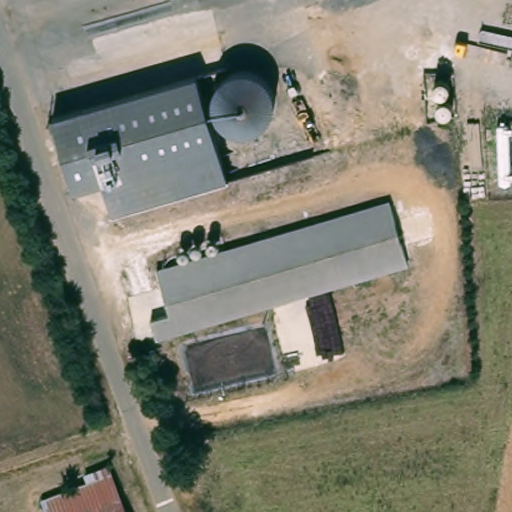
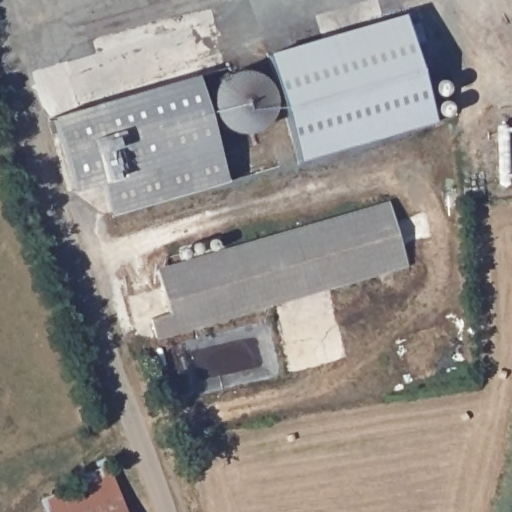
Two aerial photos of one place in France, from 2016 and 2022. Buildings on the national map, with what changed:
new [(435,120),(299,160),(281,106),(282,95),(280,83),(274,73),(267,53),(403,14),(435,120)]
unchanged [(115,210),(111,181),(79,190),(60,113),(202,72),(210,99),(212,92),(214,86),(220,77),(228,70),(238,65),(251,65),(266,68),(274,73),(280,83),(282,95),(281,110),(280,118),(275,128),(266,135),(255,138),(242,137),(230,133),(219,124),(228,177),(115,210)]
unchanged [(413,265),(161,338),(156,319),(175,314),(162,272),(273,240),(396,205),(413,265)]
unchanged [(110,474),(122,507),(124,512),(45,512),(40,498),(110,474)]

